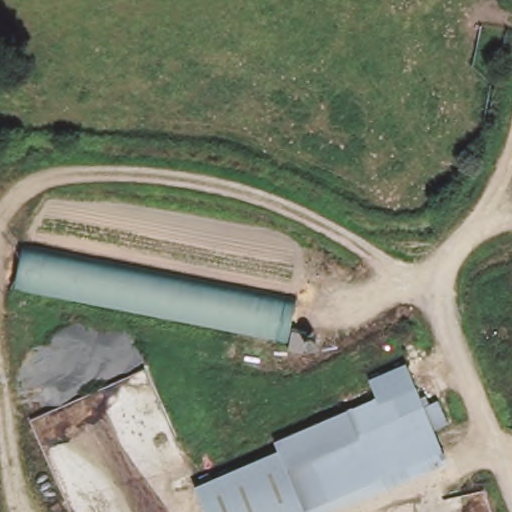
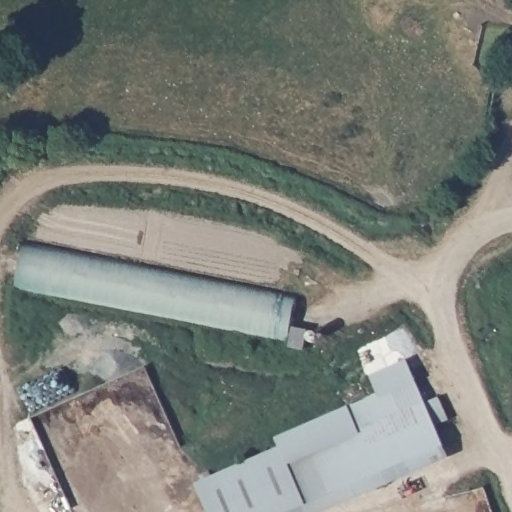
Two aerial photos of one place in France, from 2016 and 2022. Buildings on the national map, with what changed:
unchanged [(294,301),(292,330),(307,331),(319,332),(316,349),(305,347),(304,353),(286,350),(287,340),(14,288),(22,247),(294,301)]
unchanged [(450,420),(439,425),(448,447),(291,512),(213,512),(201,481),(225,471),(285,446),(281,437),(431,375),(450,420)]
unchanged [(454,461),(331,512),(291,512),(448,447),(454,461)]

